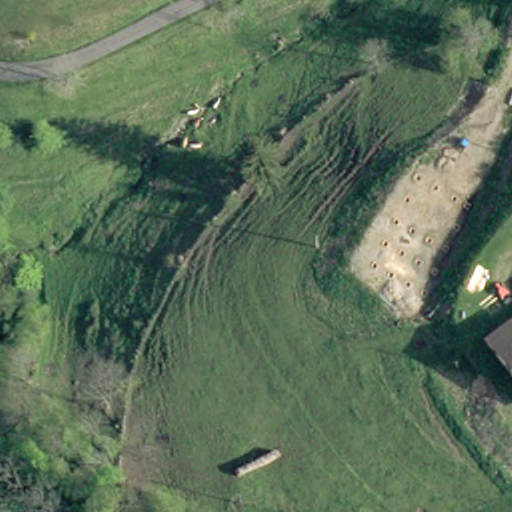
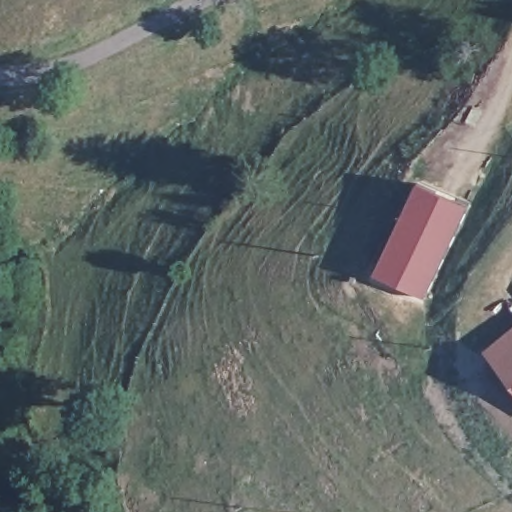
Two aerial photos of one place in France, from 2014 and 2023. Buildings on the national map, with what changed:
new [(417,184),(468,207),(425,298),(375,275),(417,184)]
unchanged [(486,352),(512,328),(512,380),(486,352)]

